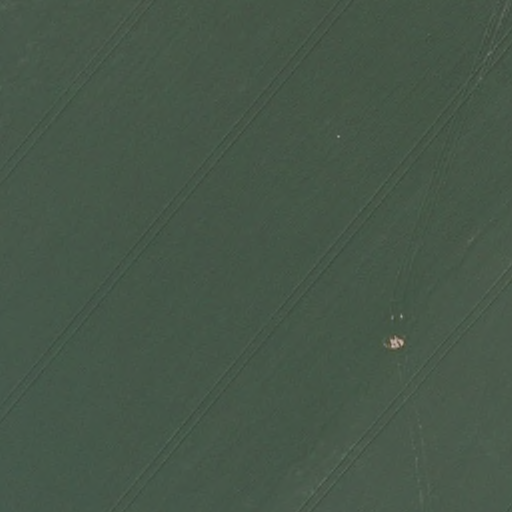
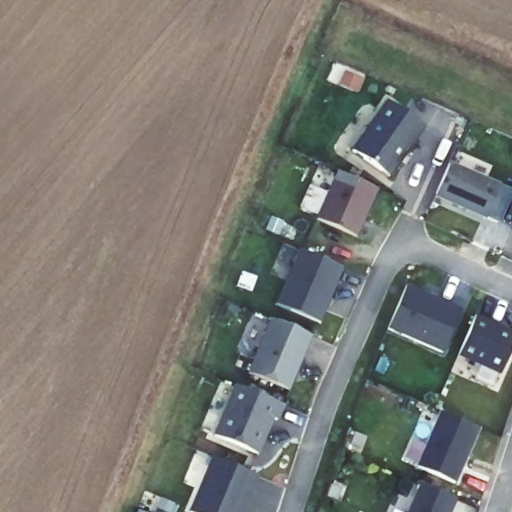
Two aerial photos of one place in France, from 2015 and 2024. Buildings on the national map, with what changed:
new [(394,177),(358,151),(393,100),(429,127),(412,152),(405,161),(394,177)]
new [(454,164),(504,187),(491,219),(440,196),(454,164)]
new [(341,171),(381,188),(359,236),(321,218),(341,171)]
new [(346,267),(323,323),(281,305),(304,249),(346,267)]
new [(411,286),(466,310),(447,353),(392,329),(411,286)]
new [(495,324),(494,326),(512,334),(512,358),(504,375),(462,357),(479,316),(495,324)]
new [(274,319),(316,336),(292,390),(251,373),(274,319)]
new [(286,406),(279,420),(276,418),(261,454),(217,436),(239,385),(286,406)]
new [(482,429),(458,485),(421,468),(444,413),(482,429)]
new [(260,476),(245,512),(192,512),(216,457),(260,476)]
new [(452,512),(412,512),(423,486),(457,501),(452,512)]

